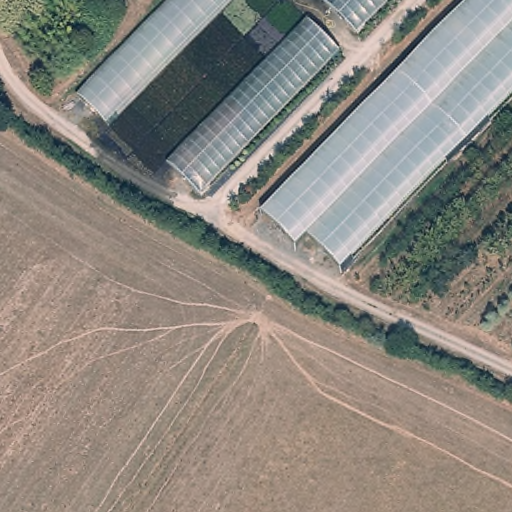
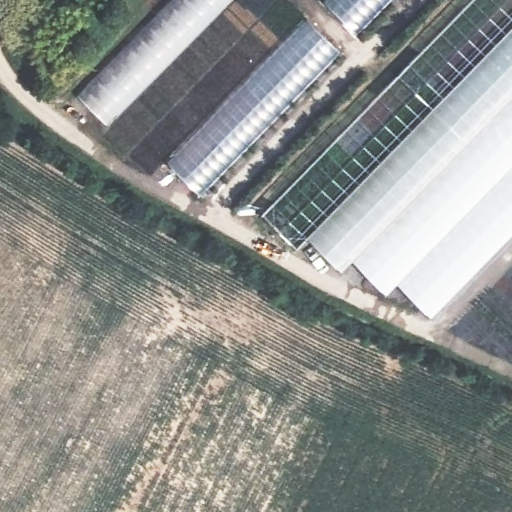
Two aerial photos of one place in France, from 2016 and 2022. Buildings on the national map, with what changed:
unchanged [(77,96),(171,0),(232,0),(109,127),(77,96)]
unchanged [(311,239),(295,254),(259,218),(473,0),(512,0),(512,100),(341,273),(311,239)]
unchanged [(325,1),(326,0),(391,0),(357,34),(325,1)]
unchanged [(341,51),(200,194),(169,162),(308,20),(341,51)]
new [(430,318),(395,283),(384,293),(352,262),(512,100),(512,234),(430,318)]

